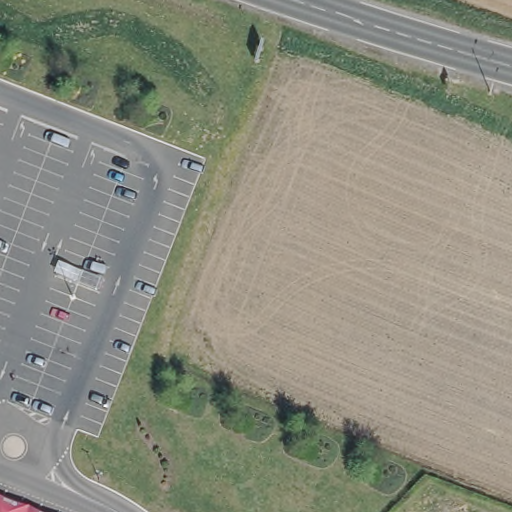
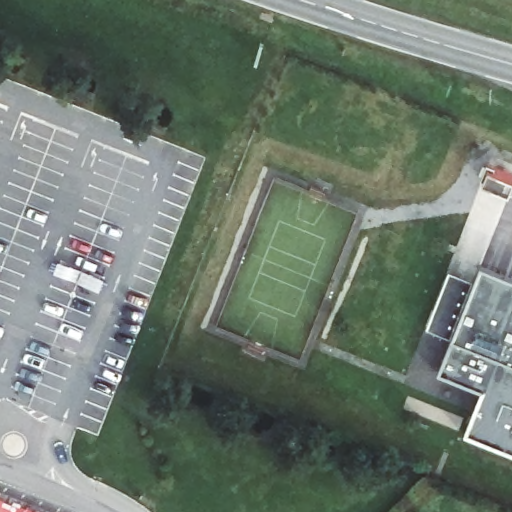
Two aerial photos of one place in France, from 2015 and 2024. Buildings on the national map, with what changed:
new [(485,387),(440,371),(482,259),(512,270),(512,448),(467,431),(485,387)]
unchanged [(38,512),(0,512),(0,497),(38,512)]

